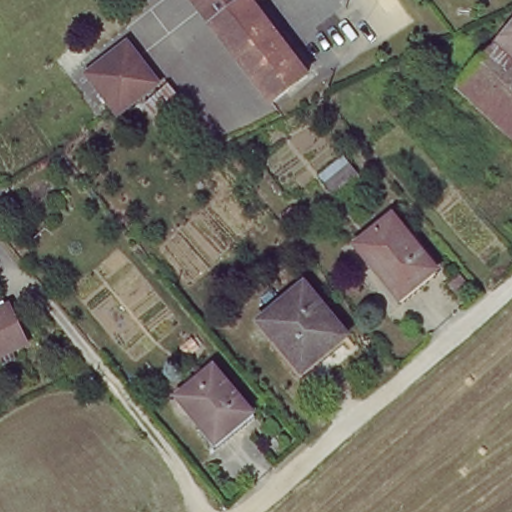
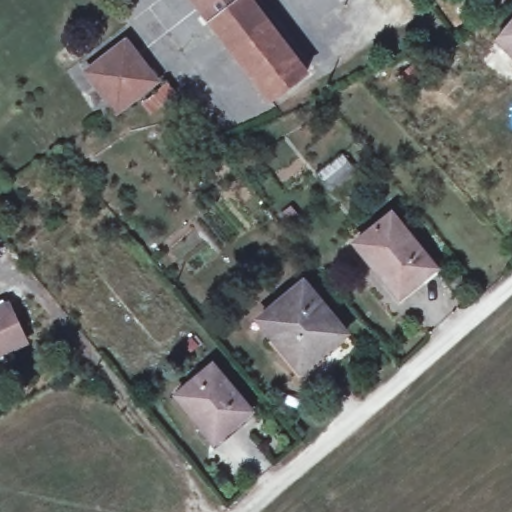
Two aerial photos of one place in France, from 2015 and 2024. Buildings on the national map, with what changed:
unchanged [(251,1),(302,71),(262,99),(191,0),(251,0),(251,1)]
unchanged [(512,22),(512,54),(497,41),(512,22)]
unchanged [(130,99),(114,110),(86,67),(127,40),(154,83),(130,99)]
demolished [(460,85),(497,41),(512,54),(512,131),(460,85)]
unchanged [(357,167),(332,187),(323,177),(348,157),(357,167)]
unchanged [(356,242),(391,214),(435,267),(401,296),(356,242)]
unchanged [(345,337),(304,371),(262,320),(303,285),(345,337)]
unchanged [(5,363),(1,355),(0,355),(0,308),(10,303),(29,342),(15,348),(19,357),(5,363)]
unchanged [(249,412),(213,442),(174,394),(210,364),(249,412)]

